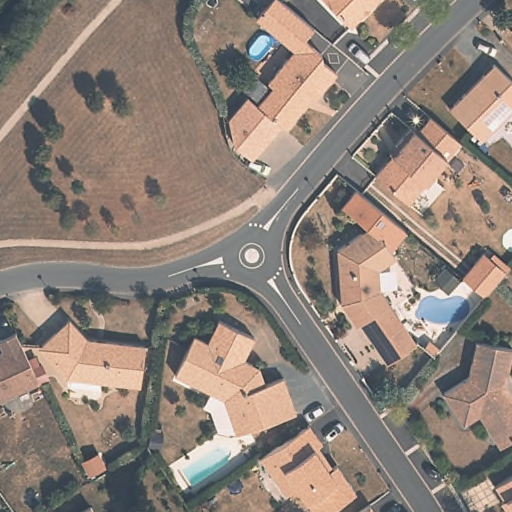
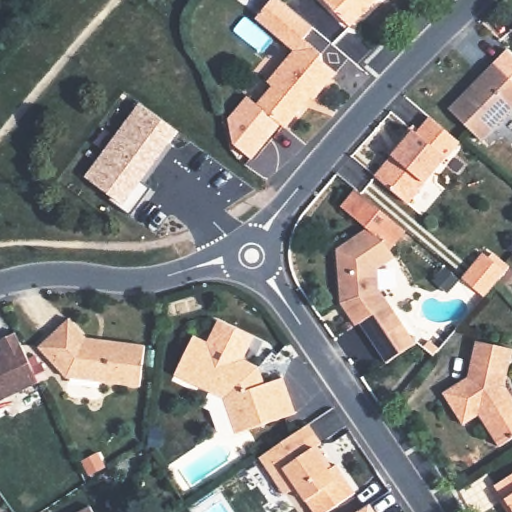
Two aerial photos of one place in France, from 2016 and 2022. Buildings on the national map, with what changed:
unchanged [(324,0),(379,0),(351,28),(324,0)]
unchanged [(322,61),(320,65),(337,79),(315,105),(310,102),(286,130),(279,125),(258,109),(274,90),(268,85),(292,54),(256,25),(274,5),(310,34),(302,44),(322,61)]
unchanged [(471,96),(488,79),(486,76),(494,68),(512,85),(512,110),(484,141),(451,111),(468,94),(471,96)]
unchanged [(253,160),(232,144),(229,118),(246,98),(258,109),(279,125),(253,160)]
new [(113,203),(114,199),(83,178),(138,100),(177,129),(140,182),(150,189),(130,214),(113,203)]
unchanged [(377,182),(400,155),(395,151),(410,134),(415,138),(427,121),(458,147),(409,209),(377,182)]
unchanged [(386,367),(374,349),(360,329),(356,331),(345,310),(339,255),(370,237),(340,211),(354,194),(400,233),(386,250),(393,262),(390,266),(377,273),(378,298),(415,348),(386,367)]
unchanged [(459,284),(481,258),(490,266),(493,261),(509,274),(505,278),(483,304),(459,284)]
unchanged [(88,347),(143,353),(139,392),(77,386),(63,384),(49,369),(55,364),(42,352),(72,328),(88,347)]
unchanged [(11,337),(36,387),(0,404),(0,343),(11,337)]
unchanged [(233,418),(225,398),(181,379),(196,343),(261,369),(264,383),(284,377),(295,412),(249,428),(237,432),(233,418)]
unchanged [(507,389),(512,395),(512,443),(503,449),(480,419),(466,429),(447,399),(471,381),(477,346),(511,353),(507,389)]
unchanged [(308,430),(320,448),(316,451),(332,472),(335,469),(353,492),(327,512),(310,512),(299,499),(294,502),(279,483),(273,486),(257,464),(308,430)]
unchanged [(512,512),(507,512),(509,508),(497,489),(512,479),(512,512)]
unchanged [(94,512),(79,512),(90,506),(94,512)]
unchanged [(371,509),(373,512),(366,512),(371,509)]

